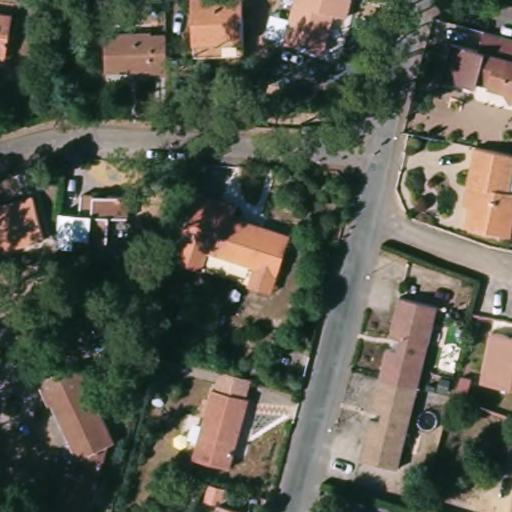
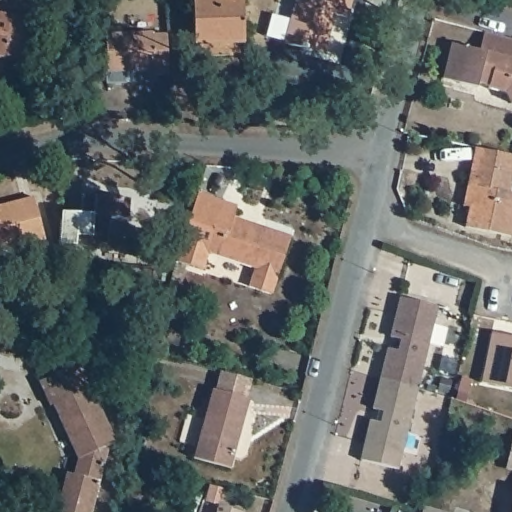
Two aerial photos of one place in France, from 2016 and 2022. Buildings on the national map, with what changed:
unchanged [(242,41),(216,42),(214,41),(192,41),(191,0),(240,0),(242,41)]
unchanged [(272,17),(288,21),(294,0),(342,0),(349,2),(345,22),(332,19),(321,57),(281,47),(265,43),(272,17)]
unchanged [(11,13),(6,55),(0,54),(0,12),(11,13)]
unchanged [(486,31),(512,38),(512,99),(508,91),(488,86),(489,83),(481,81),(480,87),(445,77),(454,42),(482,49),(486,31)]
unchanged [(149,33),(149,35),(165,34),(166,72),(150,72),(150,68),(105,69),(104,34),(149,33)]
unchanged [(469,146),(510,155),(503,191),(512,194),(512,197),(504,235),(458,225),(463,205),(456,204),(461,184),(469,146)]
unchanged [(247,284),(253,266),(203,249),(197,267),(173,259),(196,191),(219,199),(234,204),(231,215),(253,222),(289,234),(276,274),(270,292),(247,284)]
unchanged [(84,211),(85,193),(132,195),(131,216),(112,215),(111,241),(93,240),(93,235),(79,234),(78,243),(63,243),(65,210),(84,211)]
unchanged [(32,200),(43,242),(9,251),(0,253),(0,209),(32,200)]
unchanged [(74,293),(72,315),(58,313),(61,292),(74,293)]
unchanged [(436,305),(396,467),(358,458),(368,419),(378,421),(381,410),(370,407),(385,347),(396,350),(399,338),(388,335),(398,296),(436,305)]
unchanged [(512,388),(479,381),(490,331),(512,335),(512,388)]
unchanged [(42,384),(82,367),(117,445),(111,449),(96,512),(61,512),(70,475),(77,477),(81,461),(56,407),(54,409),(42,384)]
unchanged [(222,375),(246,381),(241,401),(247,402),(228,471),(192,461),(210,393),(217,394),(222,375)]
unchanged [(509,436),(512,437),(512,469),(502,466),(509,436)]
unchanged [(239,512),(215,512),(217,503),(240,510),(239,512)]
unchanged [(442,512),(414,512),(416,505),(442,512)]
unchanged [(512,512),(511,512),(512,506),(512,512)]

